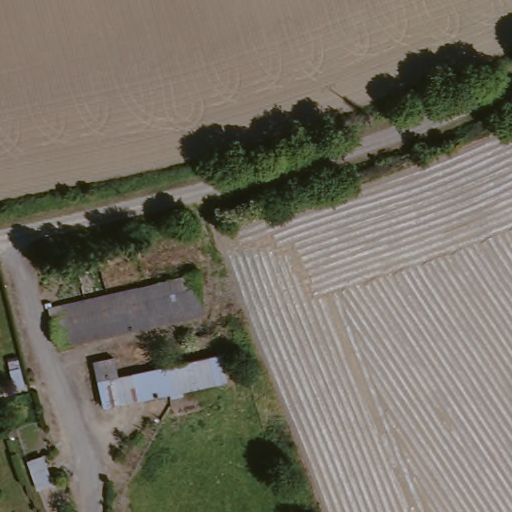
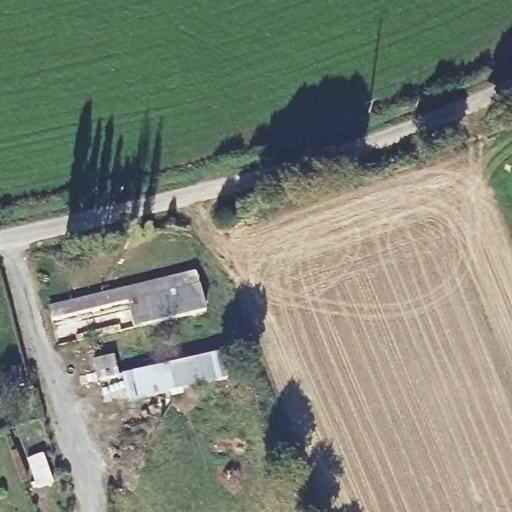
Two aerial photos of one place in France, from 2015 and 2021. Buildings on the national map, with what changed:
unchanged [(55,308),(201,272),(206,292),(153,305),(158,327),(65,351),(55,308)]
unchanged [(120,357),(125,380),(226,359),(231,381),(110,407),(100,362),(120,357)]

